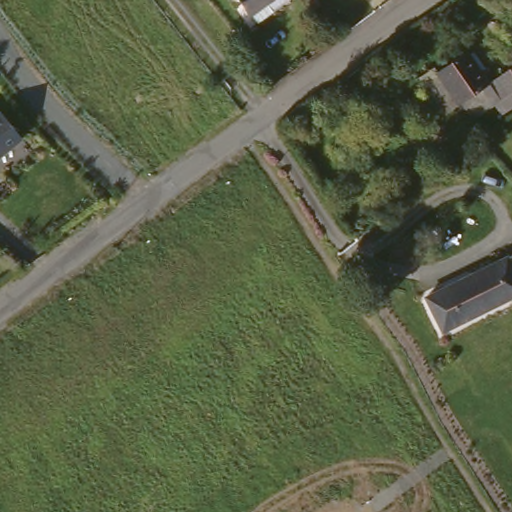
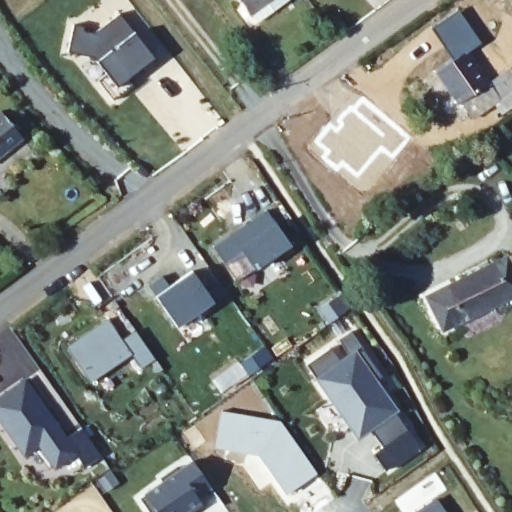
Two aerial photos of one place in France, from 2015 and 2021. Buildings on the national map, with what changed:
unchanged [(285,19),(277,11),(263,22),(245,0),(297,0),(302,7),(285,19)]
new [(133,34),(153,60),(127,80),(132,86),(112,101),(97,81),(105,73),(97,63),(66,55),(72,26),(82,27),(82,32),(95,33),(119,15),(133,34)]
unchanged [(449,69),(478,47),(501,77),(512,69),(512,104),(508,99),(485,116),(472,100),(457,111),(433,81),(449,69)]
unchanged [(12,131),(0,141),(0,115),(12,131)]
new [(275,222),(290,247),(255,272),(238,282),(214,247),(265,211),(275,222)]
unchanged [(435,298),(512,256),(512,299),(453,331),(435,298)]
new [(161,275),(171,286),(191,272),(214,302),(177,327),(155,297),(146,285),(161,275)]
new [(130,356),(89,383),(65,348),(105,321),(120,340),(135,331),(154,360),(140,369),(130,356)]
new [(329,350),(338,362),(348,354),(339,342),(351,332),(361,348),(383,378),(377,382),(398,411),(395,413),(420,447),(386,472),(372,453),(380,448),(368,432),(357,440),(306,366),(329,350)]
new [(24,377),(64,437),(79,426),(98,455),(81,466),(72,452),(52,467),(36,443),(21,453),(0,421),(0,394),(24,377)]
new [(266,420),(271,428),(281,423),(315,474),(282,495),(256,456),(215,451),(222,412),(266,420)]
new [(198,497),(201,502),(188,512),(149,512),(140,497),(191,461),(211,487),(198,497)]
new [(416,512),(435,499),(444,512),(416,512)]

